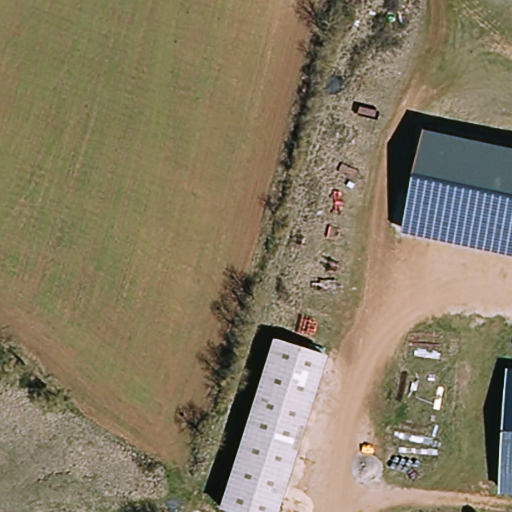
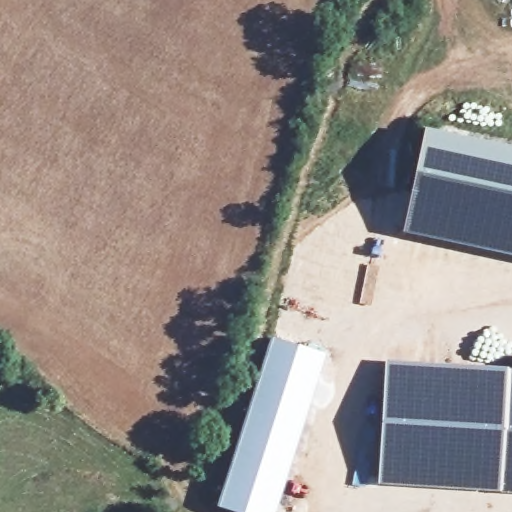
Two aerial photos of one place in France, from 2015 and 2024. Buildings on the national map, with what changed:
unchanged [(426,129),(512,148),(512,256),(403,233),(426,129)]
unchanged [(270,336),(329,355),(280,512),(229,512),(217,508),(270,336)]
new [(379,484),(386,361),(507,370),(501,492),(379,484)]
unchanged [(507,370),(512,370),(512,493),(501,492),(507,370)]

